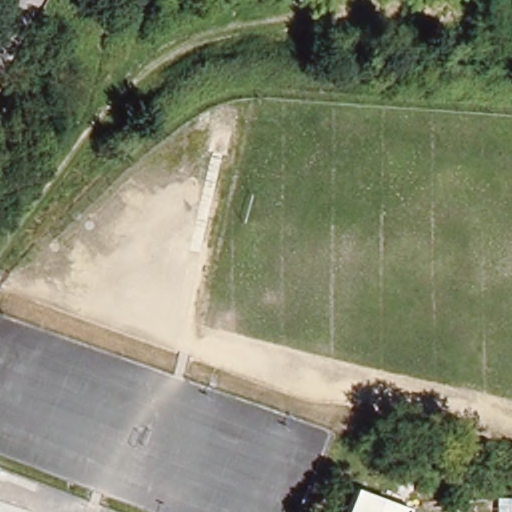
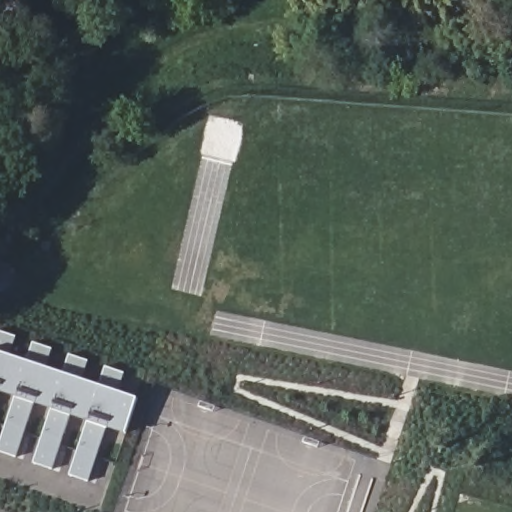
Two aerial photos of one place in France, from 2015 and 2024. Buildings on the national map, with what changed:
new [(89,481),(71,475),(89,422),(71,416),(53,469),(35,463),(52,409),(35,404),(16,457),(0,452),(0,443),(16,397),(0,392),(0,331),(16,337),(10,355),(27,360),(33,342),(53,349),(46,367),(63,372),(70,355),(88,361),(82,379),(99,384),(106,366),(124,373),(118,391),(139,398),(126,434),(106,428),(89,481)]
demolished [(363,488),(412,511),(412,512),(352,512),(363,488)]
demolished [(494,498),(512,498),(512,512),(495,512),(494,498)]

